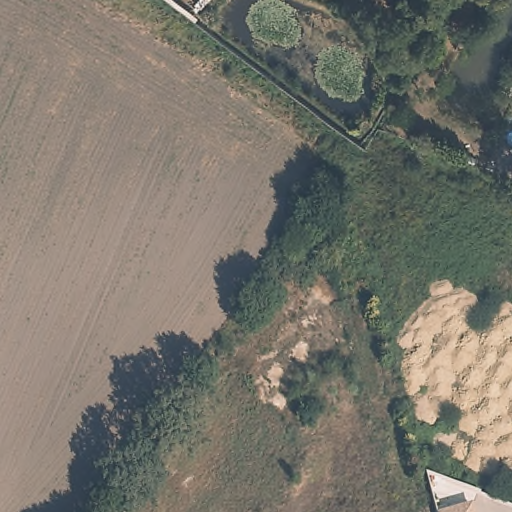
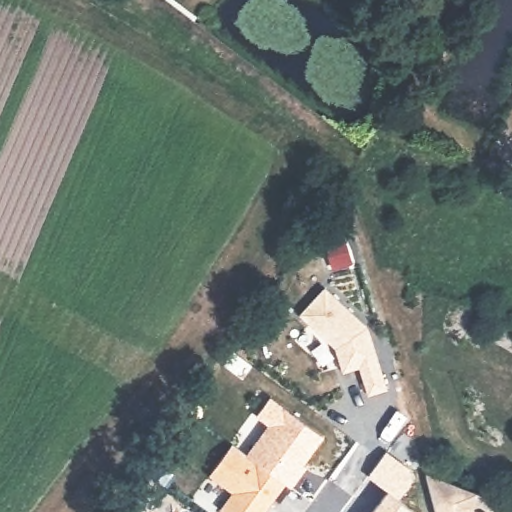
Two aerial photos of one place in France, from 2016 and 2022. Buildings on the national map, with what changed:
new [(325,288),(368,327),(387,389),(368,395),(360,367),(343,372),(335,347),(300,315),(325,288)]
new [(268,425),(255,416),(270,396),(325,437),(305,464),(308,466),(291,487),(245,453),(268,425)]
new [(233,444),(291,487),(280,503),(272,497),(261,510),(264,512),(224,512),(220,510),(233,492),(210,476),(233,444)]
new [(385,452),(410,468),(413,479),(398,499),(388,492),(367,476),(385,452)]
new [(425,473),(480,492),(471,507),(454,512),(435,512),(425,473)]
new [(388,492),(416,512),(373,512),(388,492)]
unchanged [(471,507),(473,512),(454,512),(471,507)]

